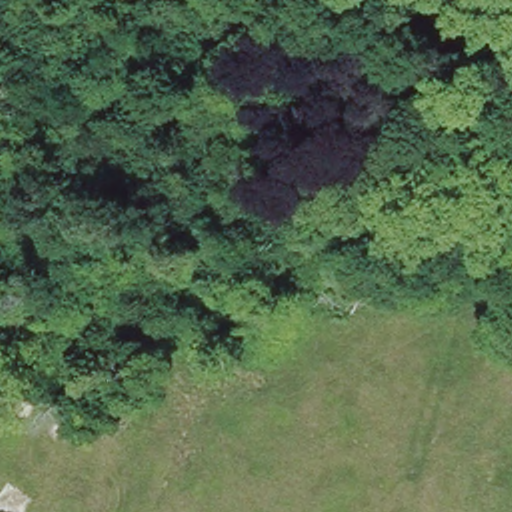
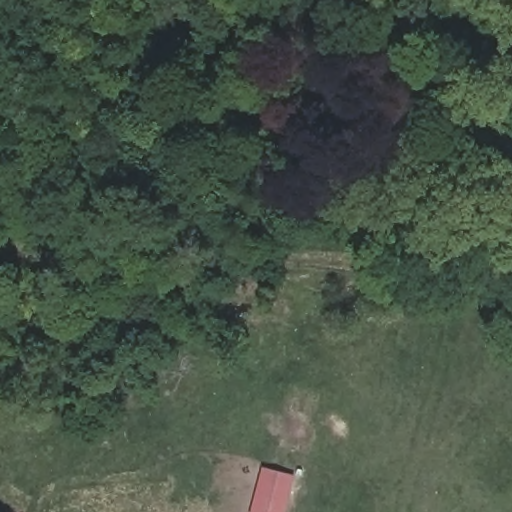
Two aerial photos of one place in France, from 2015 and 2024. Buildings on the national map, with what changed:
new [(293,475),(284,512),(251,512),(262,467),(293,475)]

